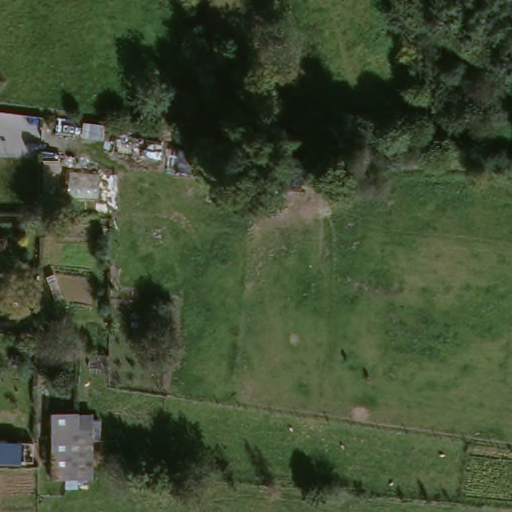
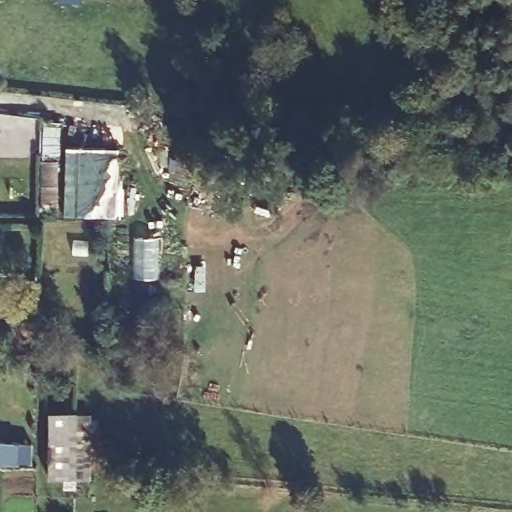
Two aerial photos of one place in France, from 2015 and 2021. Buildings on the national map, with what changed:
new [(119,214),(66,213),(68,143),(120,145),(119,214)]
unchanged [(83,471),(83,482),(58,482),(60,416),(84,416),(83,471)]

